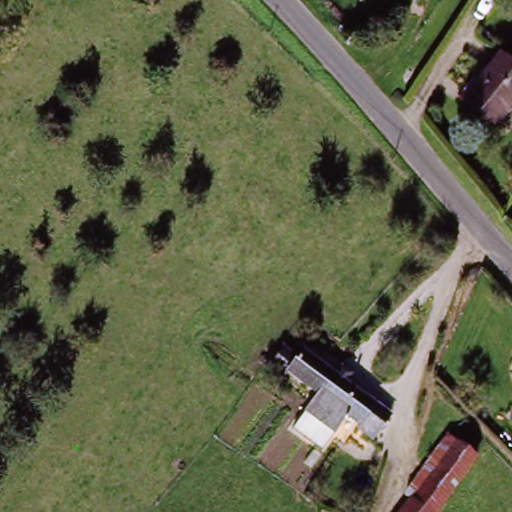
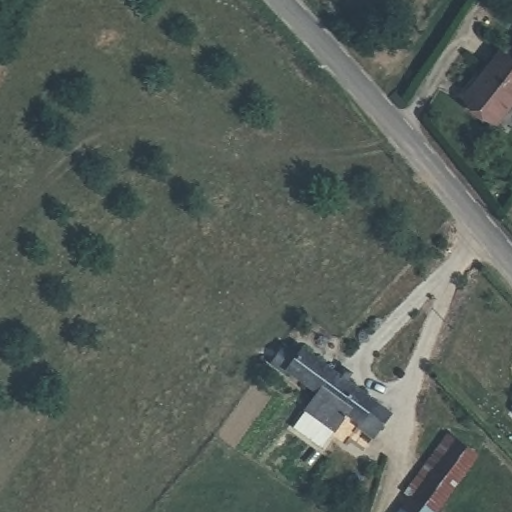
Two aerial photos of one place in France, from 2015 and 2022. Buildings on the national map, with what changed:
unchanged [(512,67),(512,104),(494,125),(466,100),(501,57),(512,67)]
unchanged [(317,397),(286,375),(284,378),(271,368),(281,356),(293,365),(301,354),(335,378),(341,369),(351,377),(346,385),(390,417),(372,442),(356,430),(359,427),(346,418),(334,435),(321,452),(292,430),(305,413),(317,397)]
unchanged [(409,501),(404,498),(447,440),(477,462),(440,512),(402,512),(409,501)]

